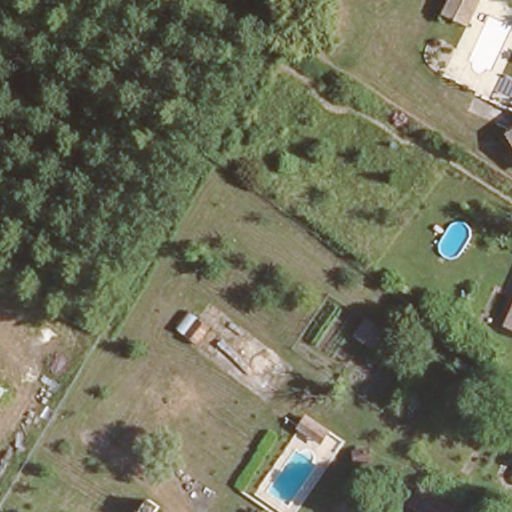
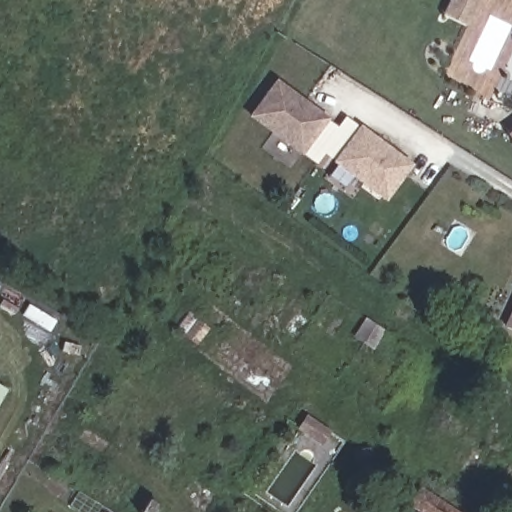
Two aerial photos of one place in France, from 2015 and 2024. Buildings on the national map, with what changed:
unchanged [(442,18),(450,0),(484,0),(469,31),(442,18)]
new [(249,115),(276,78),(329,117),(302,155),(249,115)]
new [(386,202),(333,161),(360,124),(413,164),(386,202)]
unchanged [(509,134),(512,131),(512,139),(509,134)]
unchanged [(503,328),(512,305),(512,331),(503,328)]
unchanged [(374,354),(354,339),(366,321),(386,334),(374,354)]
unchanged [(0,408),(0,392),(7,397),(0,408)]
unchanged [(404,507),(425,480),(466,512),(415,512),(404,507)]
demolished [(170,497),(185,507),(181,512),(159,512),(170,497)]

